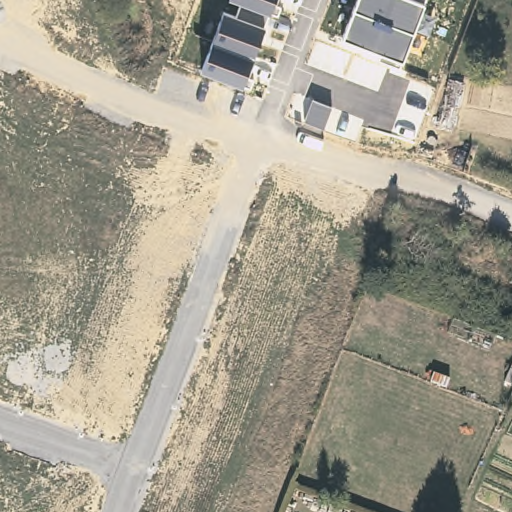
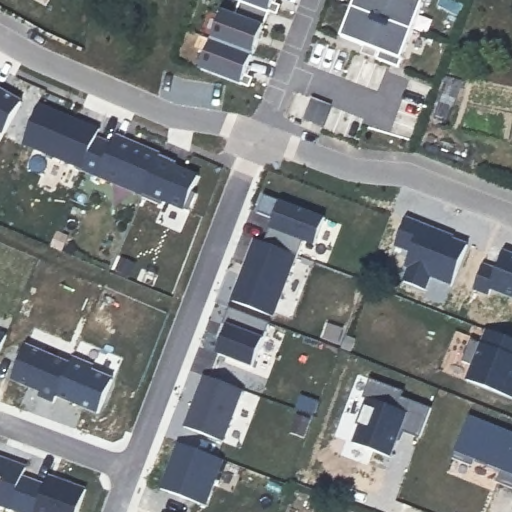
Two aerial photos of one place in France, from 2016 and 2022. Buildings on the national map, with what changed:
unchanged [(275,3),(280,7),(277,15),(270,12),(236,0),(276,0),(275,3)]
unchanged [(421,11),(434,17),(427,34),(416,28),(403,60),(400,67),(377,58),(381,51),(342,37),(357,0),(426,0),(424,2),(421,11)]
unchanged [(223,13),(264,27),(253,56),(246,71),(253,80),(249,88),(242,86),(202,71),(223,13)]
new [(1,82),(0,86),(0,81),(1,82)]
new [(24,100),(5,134),(0,131),(0,88),(24,100)]
new [(115,136),(158,155),(141,195),(82,170),(22,144),(39,104),(86,124),(99,130),(95,138),(111,145),(115,136)]
new [(157,157),(200,175),(185,210),(163,202),(162,204),(141,195),(157,157)]
new [(262,196),(323,219),(312,246),(301,242),(296,257),(262,244),(272,220),(255,214),(262,196)]
new [(253,241),(262,244),(296,257),(274,317),(232,301),(253,241)]
new [(271,323),(264,339),(254,367),(217,353),(228,325),(224,323),(229,308),(271,323)]
new [(464,360),(472,339),(482,343),(488,328),(512,338),(512,396),(469,380),(475,365),(464,360)]
new [(8,335),(0,358),(0,332),(8,335)]
new [(29,345),(72,361),(75,354),(98,364),(95,369),(115,378),(101,414),(58,396),(55,403),(40,397),(43,392),(12,380),(29,345)]
new [(244,389),(226,441),(185,427),(204,375),(244,389)]
new [(512,431),(512,488),(498,482),(503,471),(475,461),(473,466),(454,459),(469,416),(512,431)]
new [(226,460),(209,506),(161,487),(177,441),(226,460)]
new [(28,464),(12,510),(0,506),(0,455),(28,464)]
new [(89,487),(80,512),(37,512),(50,476),(89,487)]

